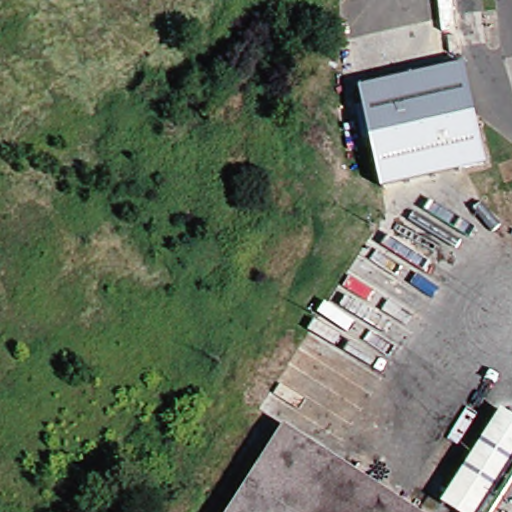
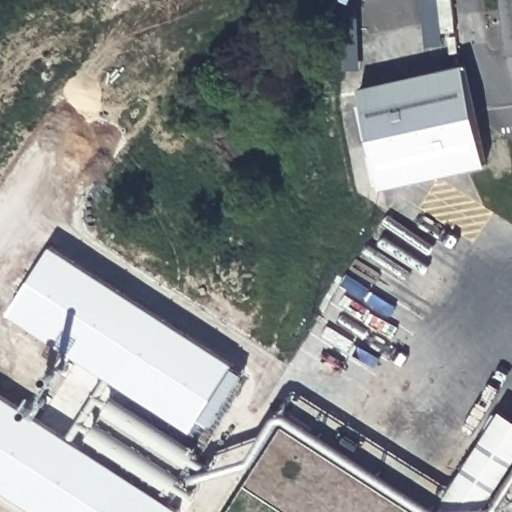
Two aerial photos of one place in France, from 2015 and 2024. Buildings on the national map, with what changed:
new [(427,45),(423,0),(453,0),(456,30),(442,32),(443,44),(427,45)]
unchanged [(358,94),(462,69),(485,166),(382,192),(358,94)]
new [(234,366),(246,373),(214,422),(202,415),(194,431),(110,377),(9,312),(53,244),(237,362),(234,366)]
new [(179,512),(37,512),(0,488),(0,391),(71,437),(169,500),(181,508),(179,512)]
unchanged [(497,409),(512,418),(512,456),(476,512),(456,512),(439,501),(497,409)]
unchanged [(291,420),(434,512),(230,512),(291,420)]

